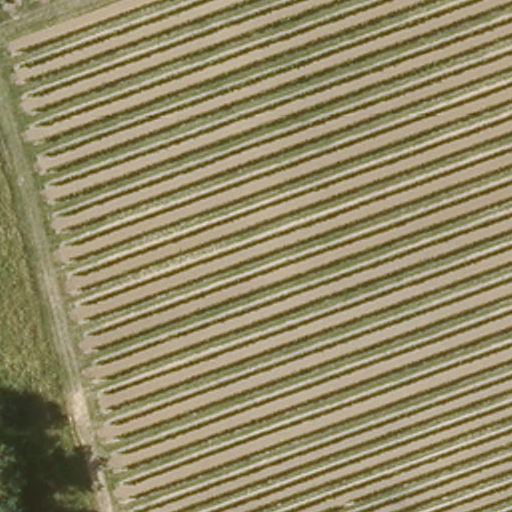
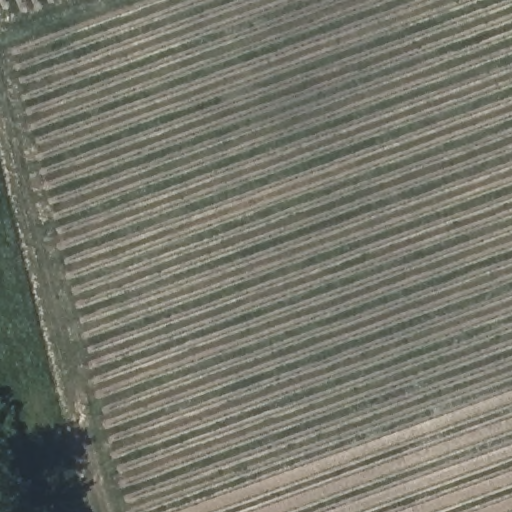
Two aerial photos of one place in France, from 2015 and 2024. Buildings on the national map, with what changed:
[]

